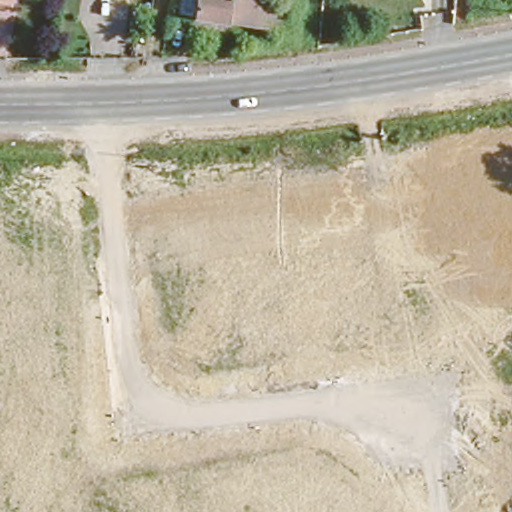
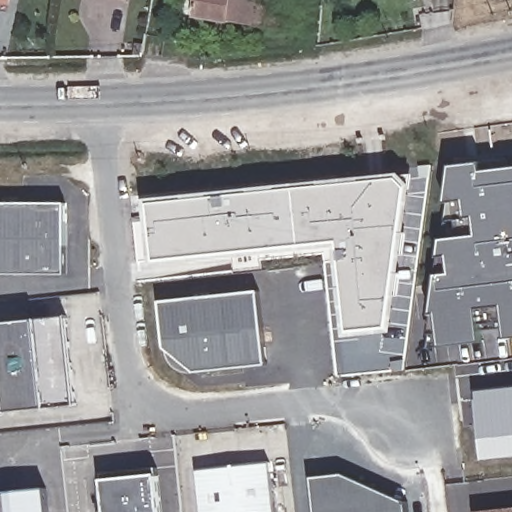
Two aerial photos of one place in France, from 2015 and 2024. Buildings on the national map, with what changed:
unchanged [(288,25),(194,13),(195,0),(292,0),(291,11),(288,25)]
new [(453,167),(482,164),(512,160),(512,338),(509,338),(507,321),(481,324),(483,341),(443,346),(427,347),(431,334),(433,315),(440,275),(442,256),(444,240),(448,202),(453,167)]
new [(345,329),(336,238),(149,257),(146,198),(397,174),(405,183),(386,326),(345,329)]
new [(67,203),(67,275),(0,275),(0,203),(67,203)]
new [(260,292),(267,364),(197,371),(187,372),(177,368),(170,360),(167,353),(167,348),(162,302),(260,292)]
new [(1,324),(37,321),(67,317),(76,404),(47,407),(7,411),(0,412),(0,324),(1,324)]
new [(512,452),(482,454),(475,388),(512,385),(512,452)]
new [(268,464),(273,512),(201,512),(197,471),(268,464)]
new [(342,473),(405,503),(405,512),(316,512),(312,478),(342,473)]
new [(157,475),(160,512),(104,512),(101,480),(157,475)]
new [(45,489),(47,512),(0,512),(0,495),(45,489)]
new [(512,512),(478,512),(512,508),(512,512)]

